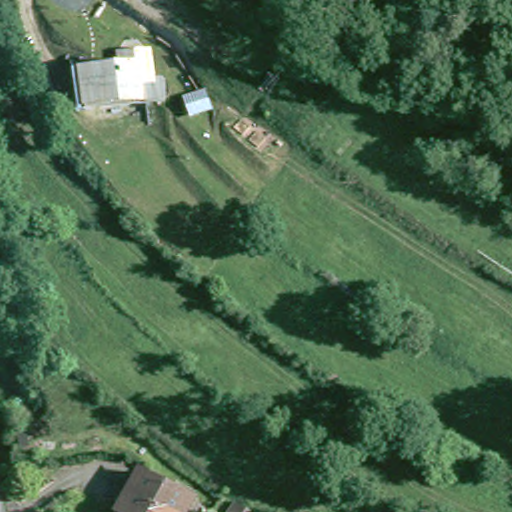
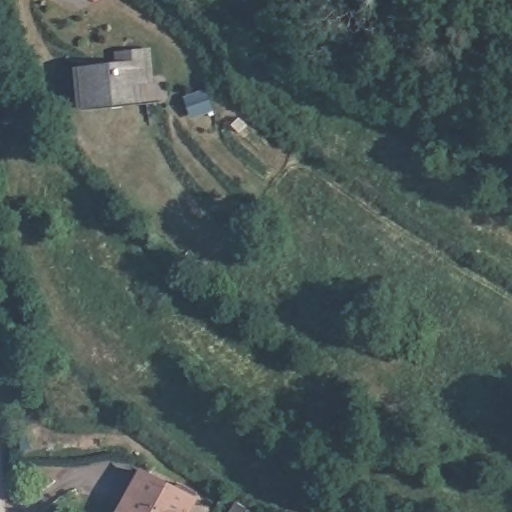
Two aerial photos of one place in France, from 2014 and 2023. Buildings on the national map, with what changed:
unchanged [(116,60),(115,52),(152,47),(155,79),(165,79),(167,101),(73,111),(68,69),(116,60)]
unchanged [(135,475),(169,493),(172,488),(192,498),(189,504),(184,512),(119,512),(115,510),(135,475)]
unchanged [(235,512),(237,510),(240,512),(235,512)]

